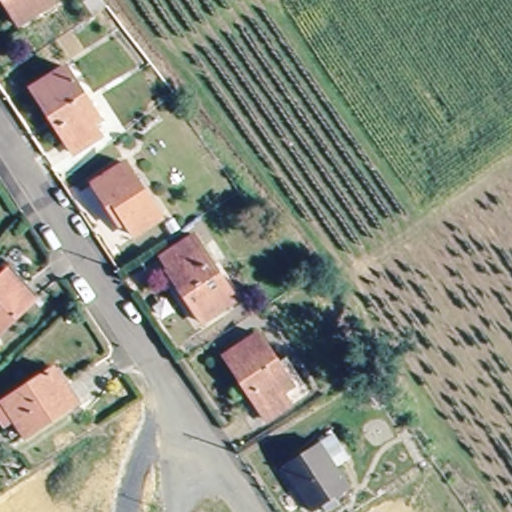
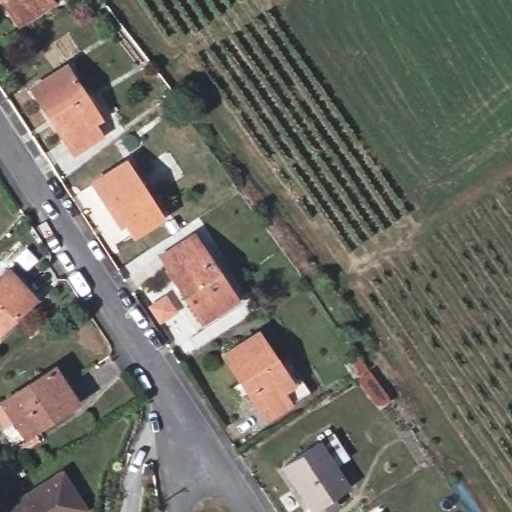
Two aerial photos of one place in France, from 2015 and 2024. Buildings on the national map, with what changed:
unchanged [(0,0),(45,0),(46,3),(13,24),(0,5),(0,0)]
unchanged [(29,91),(60,71),(96,127),(85,134),(90,142),(70,154),(29,91)]
unchanged [(127,217),(119,219),(94,178),(126,159),(161,212),(134,230),(127,217)]
unchanged [(161,254),(194,234),(234,295),(202,316),(161,254)]
unchanged [(35,295),(0,330),(0,276),(9,266),(35,295)]
unchanged [(224,352),(258,330),(294,387),(284,394),(289,403),(268,417),(224,352)]
unchanged [(74,405),(22,438),(11,421),(0,429),(0,403),(51,370),(74,405)]
unchanged [(286,467),(320,445),(348,489),(314,510),(286,467)]
new [(87,510),(85,512),(0,512),(0,509),(61,469),(87,510)]

